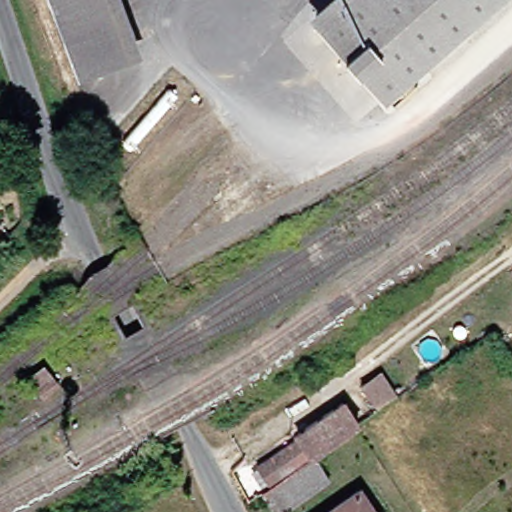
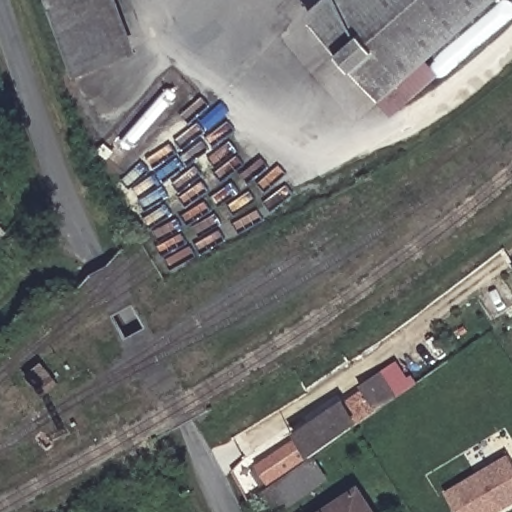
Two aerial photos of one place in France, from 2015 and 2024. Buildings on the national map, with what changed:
unchanged [(124,58),(75,75),(61,39),(46,0),(102,0),(124,58)]
unchanged [(102,0),(115,0),(135,54),(124,58),(102,0)]
unchanged [(372,94),(307,18),(329,0),(483,0),(372,94)]
unchanged [(500,301),(505,309),(489,320),(484,312),(500,301)]
unchanged [(425,346),(437,363),(428,369),(415,351),(425,346)]
unchanged [(382,368),(397,388),(377,403),(362,382),(382,368)]
unchanged [(265,459),(302,434),(300,430),(312,422),(335,406),(350,427),(326,443),(276,476),(265,459)]
new [(507,454),(512,462),(512,501),(501,508),(494,512),(456,512),(445,492),(507,454)]
unchanged [(312,456),(327,476),(276,508),(263,489),(312,456)]
unchanged [(251,490),(235,468),(244,460),(260,484),(251,490)]
unchanged [(372,512),(311,512),(354,484),(372,512)]

